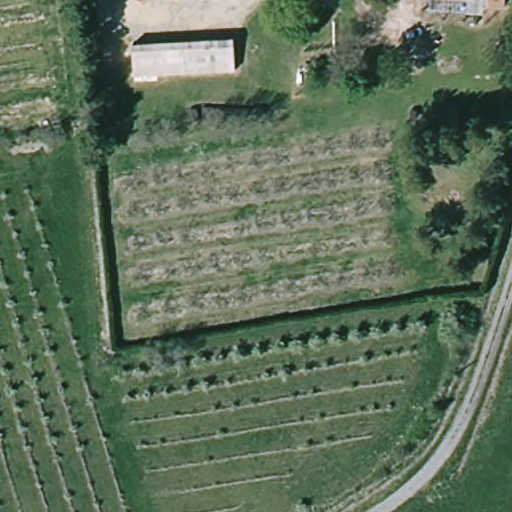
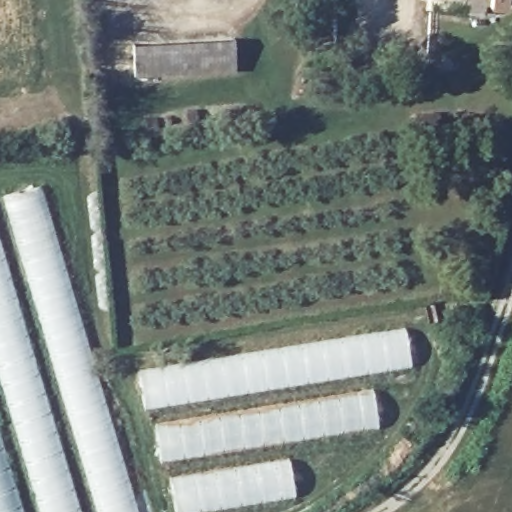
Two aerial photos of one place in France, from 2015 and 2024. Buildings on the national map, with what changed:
unchanged [(134,75),(133,45),(234,38),(234,69),(134,75)]
new [(39,186),(135,512),(100,512),(3,196),(39,186)]
new [(0,247),(78,512),(42,512),(0,374),(0,247)]
new [(409,361),(143,404),(136,366),(403,323),(409,361)]
new [(376,425),(158,459),(151,420),(371,385),(376,425)]
new [(0,512),(0,438),(22,512),(0,512)]
new [(172,511),(167,471),(287,454),(292,492),(172,511)]

